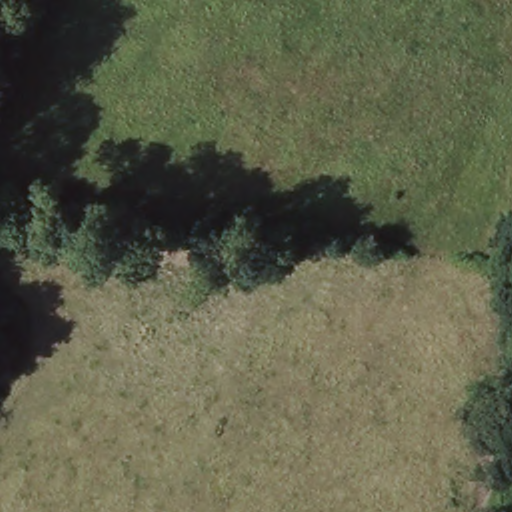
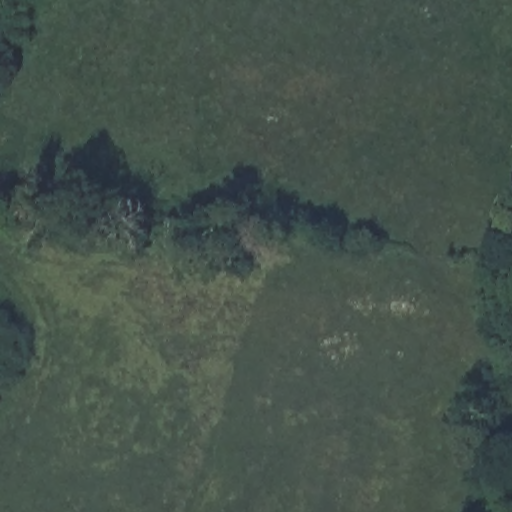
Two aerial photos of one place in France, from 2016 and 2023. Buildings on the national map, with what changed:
[]

